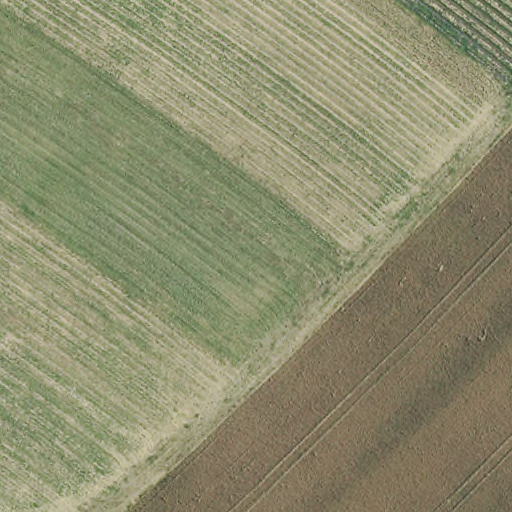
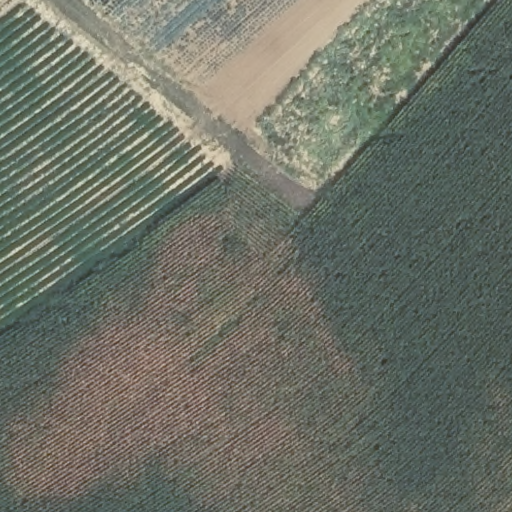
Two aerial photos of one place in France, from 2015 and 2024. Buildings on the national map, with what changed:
[]

